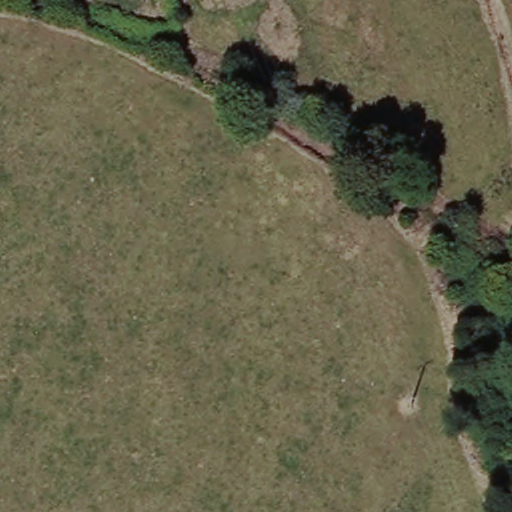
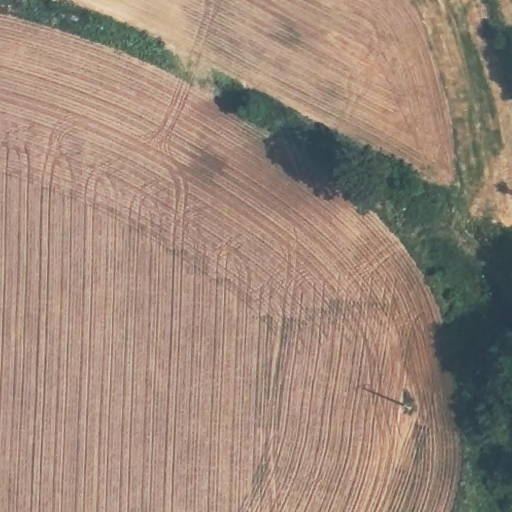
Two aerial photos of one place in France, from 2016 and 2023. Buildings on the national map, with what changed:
[]

